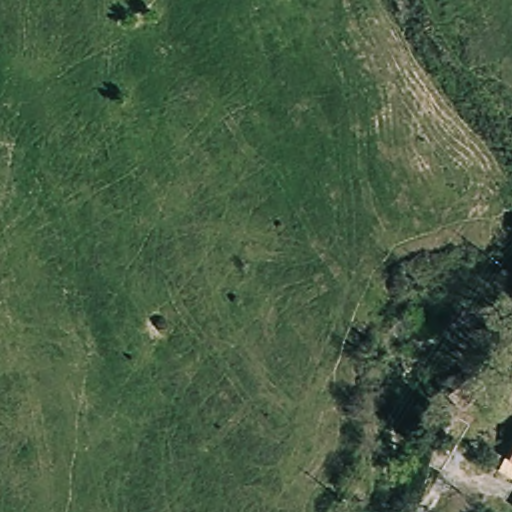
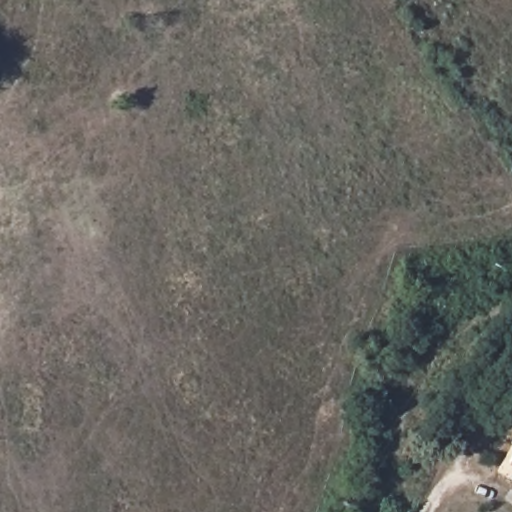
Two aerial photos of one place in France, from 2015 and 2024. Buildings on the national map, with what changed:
unchanged [(510,466),(512,462),(512,467),(510,466)]

